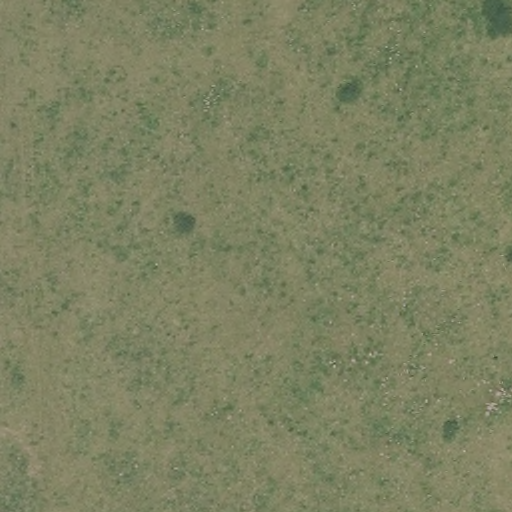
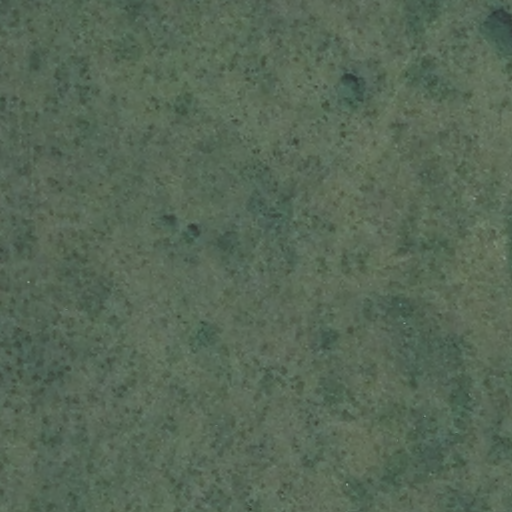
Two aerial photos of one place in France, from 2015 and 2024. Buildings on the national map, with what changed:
[]

